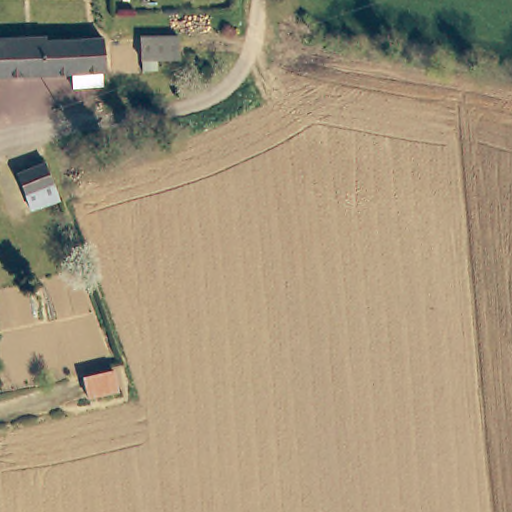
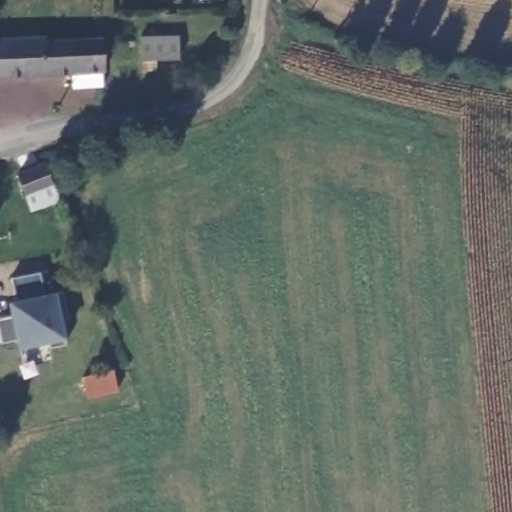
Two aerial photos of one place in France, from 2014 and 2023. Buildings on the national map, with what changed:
unchanged [(179,46),(141,49),(141,23),(178,21),(179,46)]
unchanged [(66,92),(65,77),(0,80),(0,41),(39,39),(40,45),(96,42),(98,90),(66,92)]
unchanged [(33,217),(26,201),(20,182),(51,170),(58,190),(64,208),(33,217)]
new [(9,301),(15,299),(11,278),(39,273),(41,294),(55,291),(56,295),(62,292),(68,318),(60,320),(64,338),(65,344),(49,347),(48,341),(18,347),(15,339),(2,342),(0,331),(0,318),(11,317),(9,301)]

